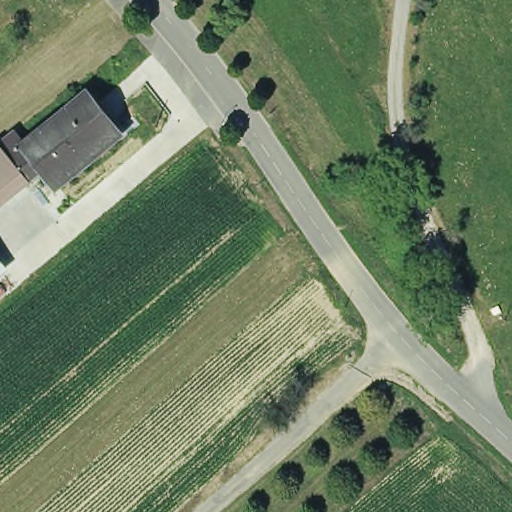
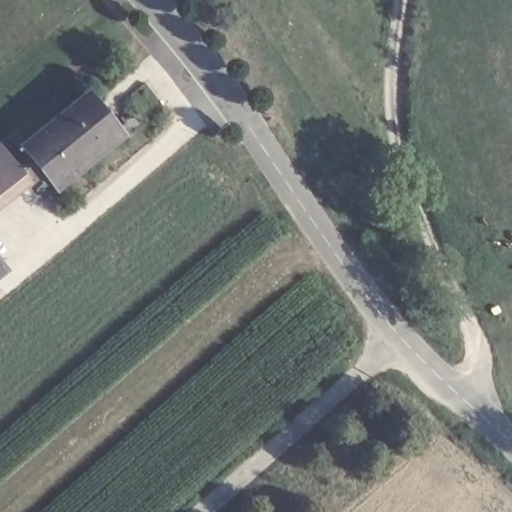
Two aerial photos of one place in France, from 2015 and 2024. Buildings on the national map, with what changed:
unchanged [(91,94),(130,140),(63,197),(47,180),(35,189),(13,159),(91,94)]
unchanged [(0,216),(0,148),(2,146),(13,159),(35,189),(0,216)]
unchanged [(1,257),(0,258),(0,256),(1,257)]

